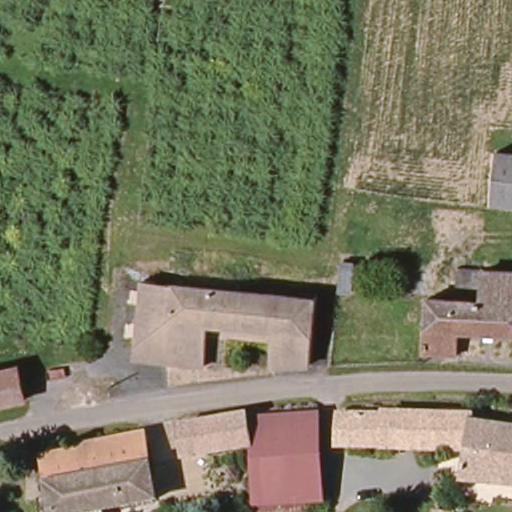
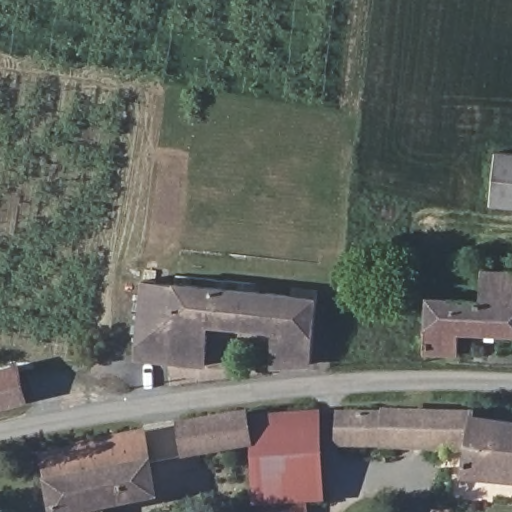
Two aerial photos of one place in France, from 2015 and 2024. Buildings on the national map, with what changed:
unchanged [(496,152),(512,154),(512,208),(494,206),(496,152)]
unchanged [(357,293),(348,293),(350,264),(362,265),(357,293)]
unchanged [(468,331),(465,355),(431,353),(436,297),(483,301),(485,283),(478,282),(481,266),(512,269),(512,336),(468,331)]
unchanged [(310,365),(273,369),(277,337),(212,327),(206,367),(139,362),(148,280),(320,300),(310,365)]
unchanged [(0,409),(0,372),(22,368),(28,404),(0,409)]
unchanged [(252,420),(254,447),(185,461),(177,424),(253,410),(252,420)]
unchanged [(322,416),(325,503),(305,503),(252,505),(254,447),(252,420),(322,416)]
unchanged [(467,489),(468,459),(346,452),(347,417),(477,423),(476,429),(512,434),(512,492),(467,489)]
unchanged [(160,500),(103,512),(53,512),(47,484),(51,483),(46,451),(145,429),(160,500)]
unchanged [(305,512),(252,512),(252,505),(305,503),(305,512)]

